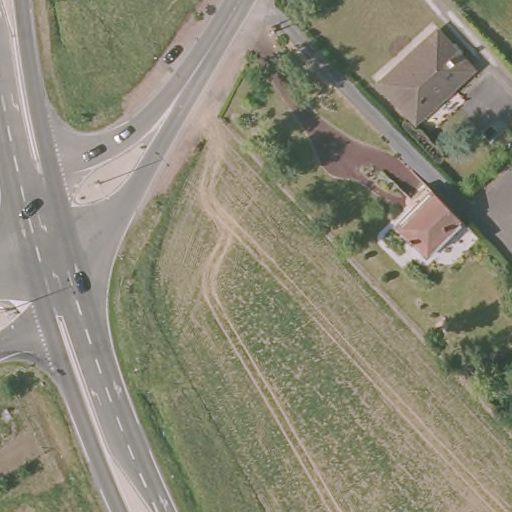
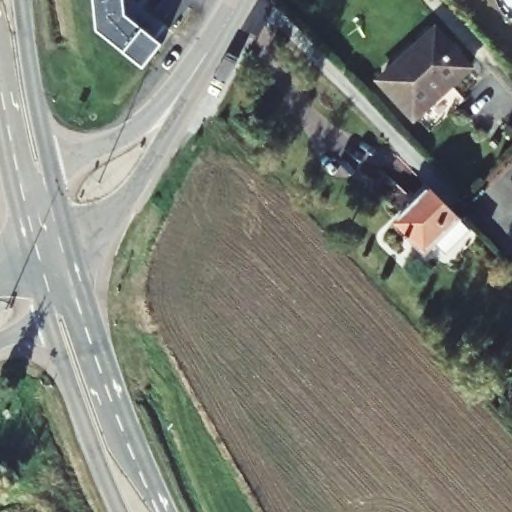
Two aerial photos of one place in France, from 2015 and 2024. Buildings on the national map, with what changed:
new [(143,68),(97,30),(94,0),(124,0),(126,16),(162,44),(143,68)]
unchanged [(470,78),(418,127),(378,89),(432,39),(470,78)]
unchanged [(425,257),(394,225),(430,189),(461,222),(425,257)]

